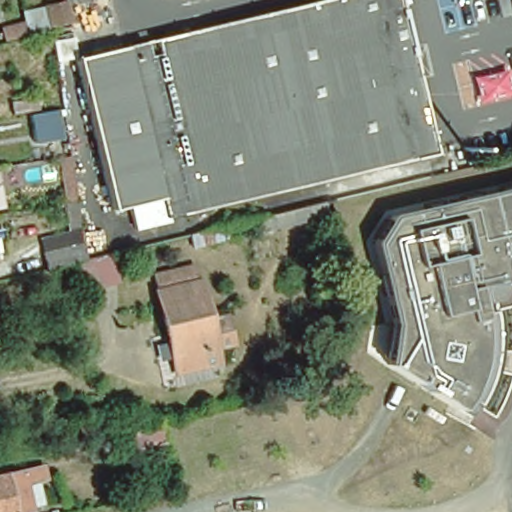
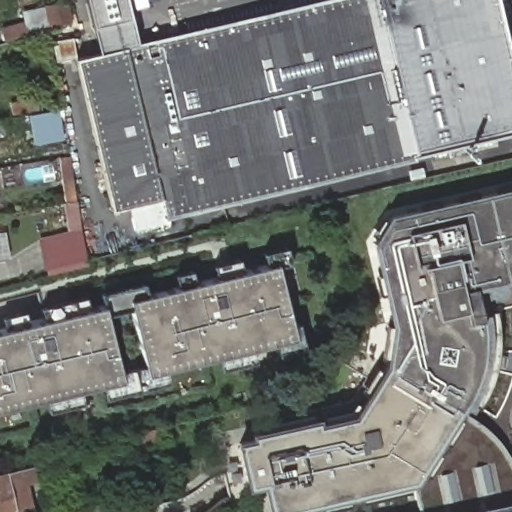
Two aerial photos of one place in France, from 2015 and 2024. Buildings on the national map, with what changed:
new [(24,22),(21,10),(45,4),(65,0),(70,20),(50,24),(51,29),(49,30),(27,35),(5,40),(2,27),(24,22)]
demolished [(70,24),(65,4),(84,0),(89,20),(70,24)]
unchanged [(419,157),(170,220),(165,200),(116,212),(79,59),(127,47),(327,0),(401,0),(439,153),(419,157)]
new [(127,47),(100,54),(88,0),(127,0),(138,45),(127,47)]
new [(512,135),(439,153),(401,0),(495,0),(512,68),(512,135)]
unchanged [(61,105),(66,132),(38,135),(34,110),(61,105)]
unchanged [(437,211),(512,194),(512,282),(494,286),(488,295),(493,314),(495,314),(495,315),(496,316),(496,317),(496,318),(496,320),(496,321),(497,322),(497,323),(497,324),(497,325),(497,326),(498,328),(498,329),(498,330),(498,331),(498,332),(498,333),(498,335),(498,336),(498,337),(498,338),(498,339),(499,340),(499,341),(499,342),(499,343),(499,344),(499,345),(499,346),(499,347),(499,348),(498,350),(498,351),(498,352),(498,353),(498,354),(498,355),(498,357),(498,358),(498,359),(498,360),(498,361),(497,362),(497,363),(497,365),(497,366),(497,367),(497,368),(496,369),(496,370),(496,371),(496,373),(495,374),(495,375),(495,376),(495,377),(494,378),(494,379),(494,380),(493,382),(493,383),(493,384),(492,385),(492,386),(492,387),(491,388),(491,389),(490,390),(490,391),(490,393),(489,394),(489,395),(488,396),(488,397),(487,398),(487,399),(486,400),(486,401),(486,402),(485,403),(484,404),(484,405),(483,406),(483,407),(482,408),(482,409),(481,410),(481,411),(480,412),(479,413),(467,405),(460,416),(387,370),(393,329),(374,248),(390,222),(437,211)]
new [(45,269),(39,237),(70,230),(66,204),(78,202),(87,259),(45,269)]
demolished [(329,204),(334,222),(269,233),(265,217),(329,204)]
demolished [(223,227),(227,244),(195,250),(191,235),(223,227)]
demolished [(75,246),(77,264),(72,266),(51,271),(48,254),(75,246)]
new [(7,329),(3,316),(24,311),(27,324),(46,320),(43,306),(86,296),(89,309),(104,306),(100,292),(143,282),(147,295),(177,287),(175,274),(192,270),(195,283),(217,278),(214,264),(241,258),(244,271),(268,265),(264,252),(286,247),(290,260),(277,263),(295,338),(302,336),(306,349),(278,356),(275,343),(252,348),(256,361),(226,368),(222,355),(165,370),(148,374),(146,366),(131,308),(106,314),(120,372),(122,380),(80,390),(84,402),(51,410),(47,398),(0,410),(0,331),(7,329)]
demolished [(117,254),(124,285),(85,292),(77,264),(91,261),(117,254)]
demolished [(156,286),(199,276),(214,344),(219,358),(201,362),(174,367),(156,286)]
new [(122,380),(120,372),(146,366),(148,374),(165,370),(168,382),(108,397),(105,384),(122,380)]
new [(460,416),(416,483),(287,512),(270,512),(264,486),(247,489),(237,442),(252,439),(250,433),(318,418),(319,423),(357,415),(387,370),(460,416)]
new [(463,412),(478,421),(490,430),(501,442),(508,454),(512,462),(512,507),(488,512),(422,512),(416,483),(460,416),(463,412)]
unchanged [(134,451),(130,434),(139,432),(162,427),(166,444),(134,451)]
unchanged [(31,512),(0,512),(0,471),(37,463),(40,475),(24,478),(31,512)]
new [(512,507),(512,512),(488,512),(512,507)]

